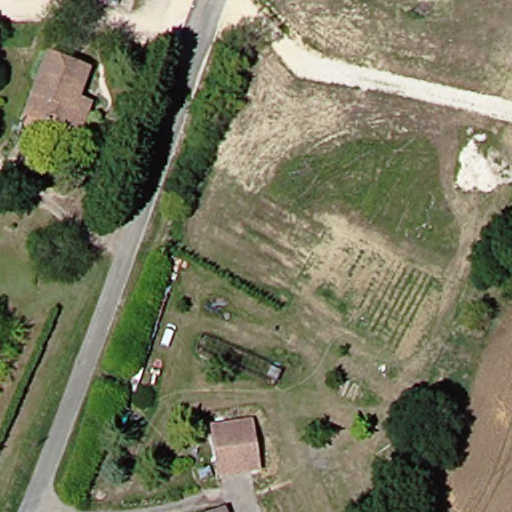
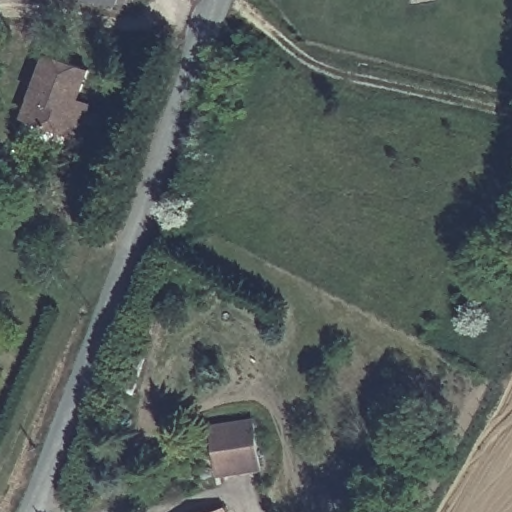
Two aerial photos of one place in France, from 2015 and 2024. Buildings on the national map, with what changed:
unchanged [(87,0),(94,0),(93,2),(87,0)]
unchanged [(79,111),(74,132),(36,120),(34,126),(14,120),(36,49),(79,60),(70,89),(84,94),(79,111)]
unchanged [(219,474),(213,423),(253,417),(260,465),(260,472),(239,472),(219,474)]

